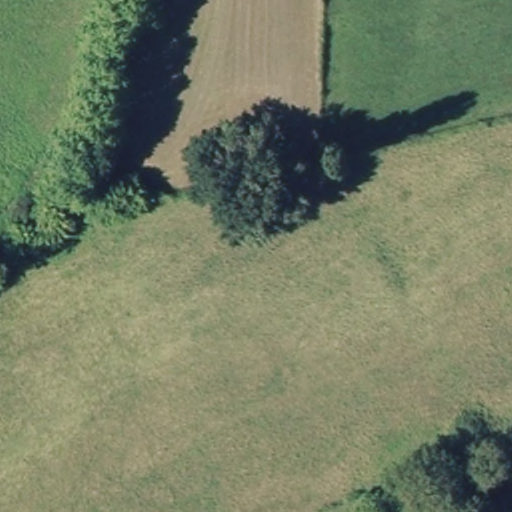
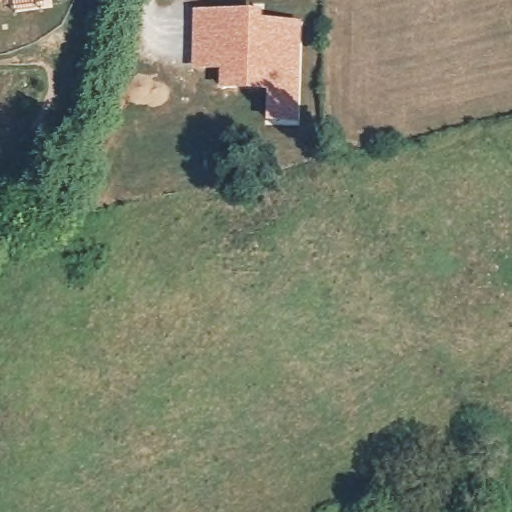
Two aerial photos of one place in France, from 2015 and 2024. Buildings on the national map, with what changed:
new [(263,12),(263,20),(302,20),(299,124),(266,125),(266,95),(219,94),(220,71),(192,69),(194,10),(263,12)]
unchanged [(427,490),(434,505),(419,512),(410,512),(406,498),(427,490)]

